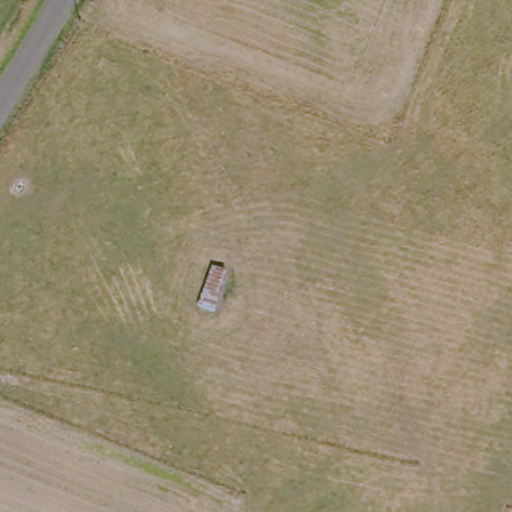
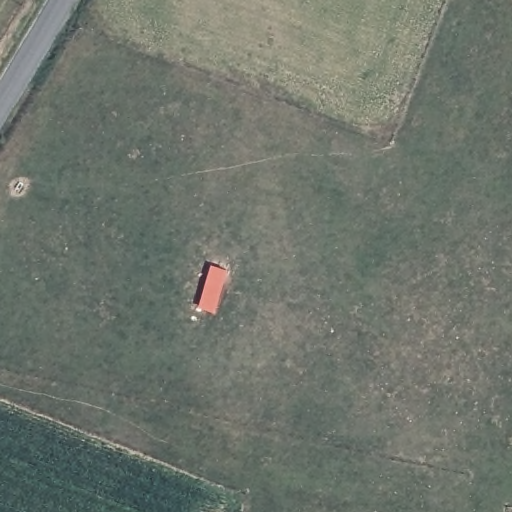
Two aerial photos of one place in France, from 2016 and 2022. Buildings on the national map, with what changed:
unchanged [(199,308),(213,263),(232,269),(220,313),(199,308)]

